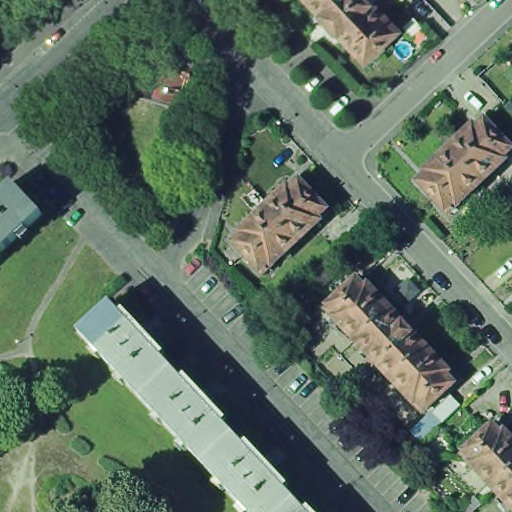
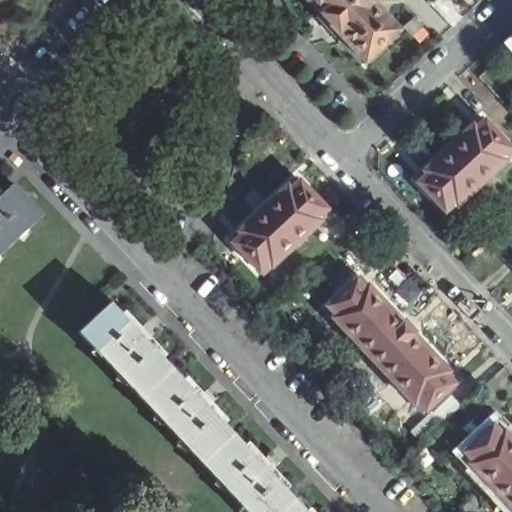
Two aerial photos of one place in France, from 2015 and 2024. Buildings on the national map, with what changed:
unchanged [(319,18),(323,14),(309,0),(371,0),(399,29),(366,60),(338,30),(334,34),(326,26),(319,18)]
unchanged [(512,104),(512,113),(508,109),(512,104)]
unchanged [(449,148),(482,117),(512,150),(512,153),(481,182),(449,148)]
unchanged [(448,212),(416,178),(449,148),(481,182),(448,212)]
unchanged [(329,211),(296,242),(264,208),(296,178),(329,211)]
unchanged [(13,183),(43,214),(0,254),(0,196),(13,183)]
unchanged [(296,242),(263,273),(231,239),(264,208),(296,242)]
unchanged [(230,247),(238,256),(231,263),(222,253),(230,247)]
unchanged [(326,262),(336,274),(324,284),(314,272),(326,262)]
unchanged [(326,308),(359,276),(390,309),(356,341),(326,308)]
unchanged [(177,373),(145,402),(83,336),(115,307),(142,336),(146,332),(155,342),(151,346),(177,373)]
unchanged [(402,322),(405,319),(416,331),(413,334),(426,347),(392,379),(356,341),(390,309),(402,322)]
unchanged [(456,379),(422,411),(392,379),(426,347),(456,379)]
unchanged [(203,402),(208,398),(216,408),(213,411),(238,439),(207,468),(145,402),(177,373),(203,402)]
unchanged [(461,405),(443,422),(432,411),(451,393),(461,405)]
unchanged [(429,413),(439,423),(428,433),(419,424),(429,413)]
unchanged [(512,478),(498,491),(467,459),(501,427),(512,439),(512,478)]
unchanged [(293,512),(248,512),(207,468),(238,439),(265,467),(269,464),(278,473),(274,477),(301,505),(293,512)]
unchanged [(512,506),(498,491),(512,478),(512,512),(509,512),(508,510),(512,506)]
unchanged [(473,512),(457,512),(474,496),(481,504),(473,512)]
unchanged [(293,512),(301,505),(307,512),(293,512)]

